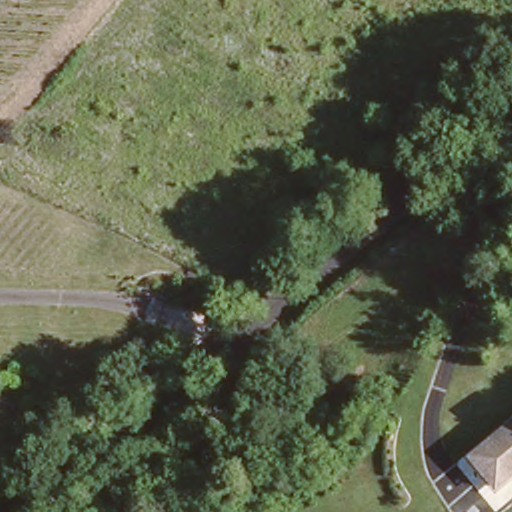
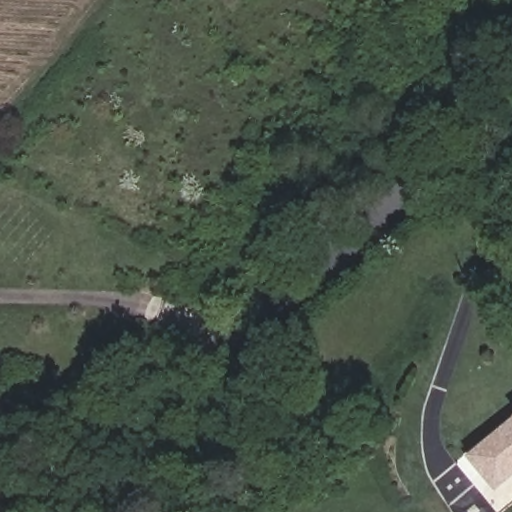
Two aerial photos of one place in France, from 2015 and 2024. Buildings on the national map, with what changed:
unchanged [(512,468),(501,477),(475,446),(512,413),(512,468)]

